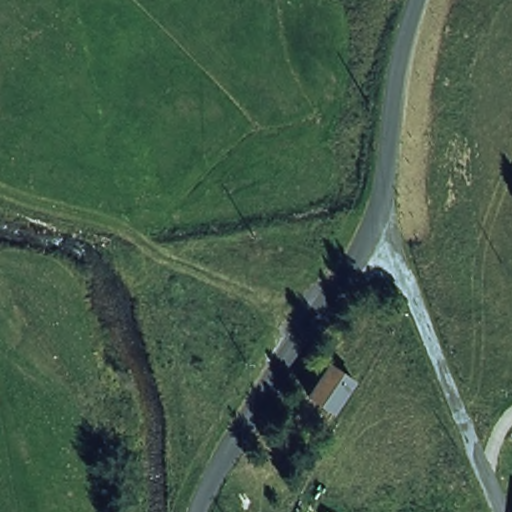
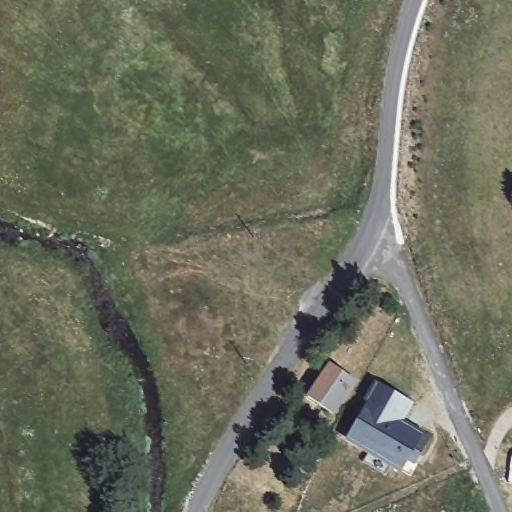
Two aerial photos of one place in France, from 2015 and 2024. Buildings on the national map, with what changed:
unchanged [(335,413),(302,391),(324,360),(357,382),(335,413)]
new [(413,403),(402,422),(422,433),(423,430),(429,434),(428,442),(413,466),(407,462),(400,475),(343,442),(375,383),(413,403)]

